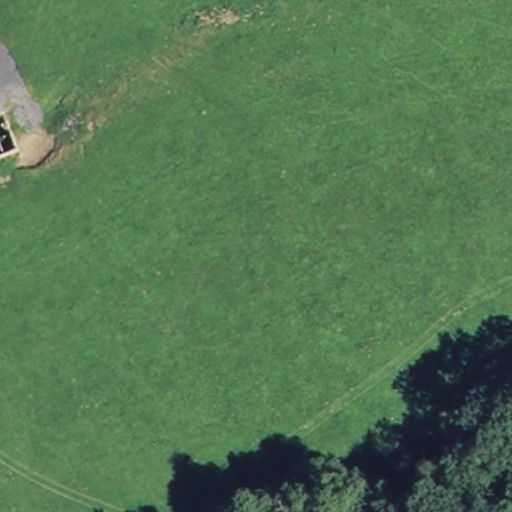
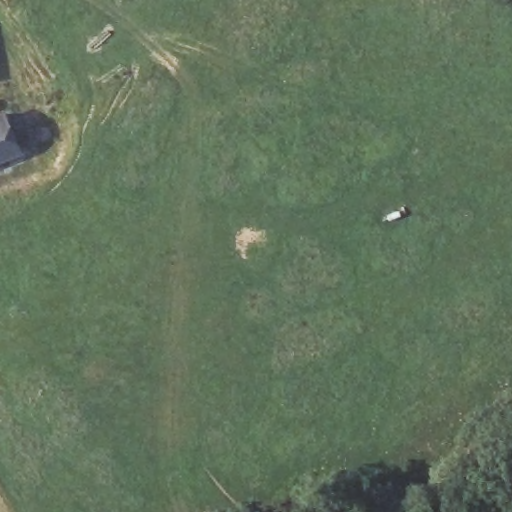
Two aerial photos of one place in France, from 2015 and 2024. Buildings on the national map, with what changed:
unchanged [(0,166),(0,113),(1,112),(20,159),(0,166)]

